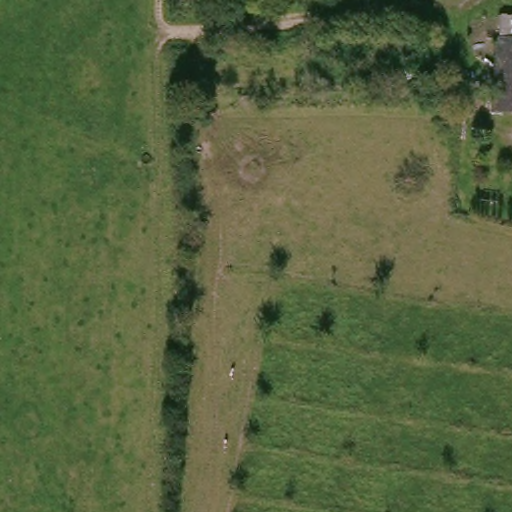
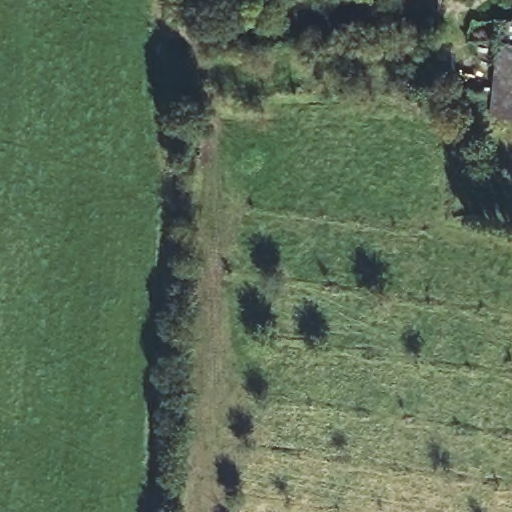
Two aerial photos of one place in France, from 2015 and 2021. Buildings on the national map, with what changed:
unchanged [(512,16),(512,45),(493,44),(497,16),(512,16)]
unchanged [(512,45),(512,120),(488,119),(493,44),(512,45)]

